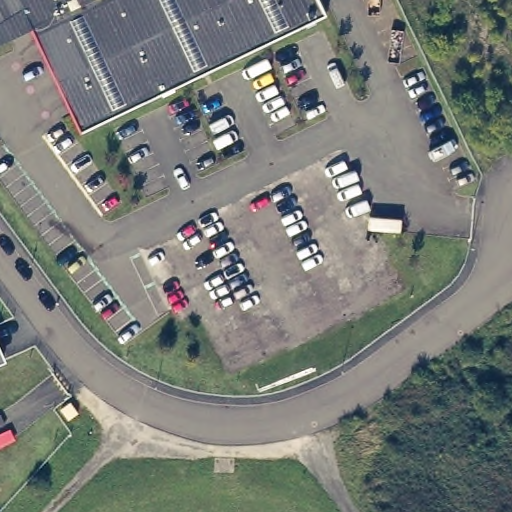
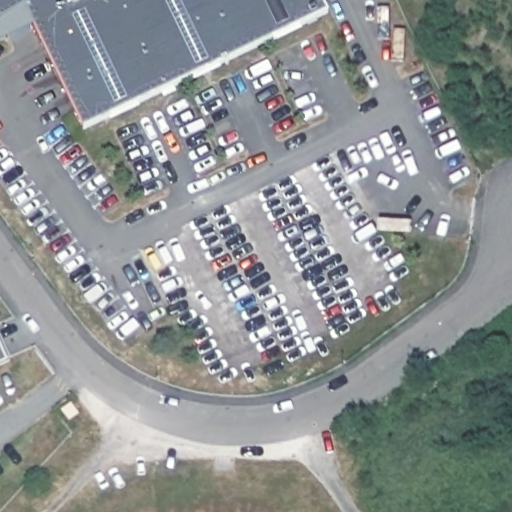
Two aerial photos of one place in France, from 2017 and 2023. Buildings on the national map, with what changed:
unchanged [(82,130),(33,28),(24,10),(0,22),(0,0),(321,0),(327,12),(82,130)]
unchanged [(33,28),(0,43),(0,22),(24,10),(33,28)]
unchanged [(0,356),(4,365),(0,366),(0,356)]
unchanged [(62,410),(70,402),(78,413),(69,420),(62,410)]

